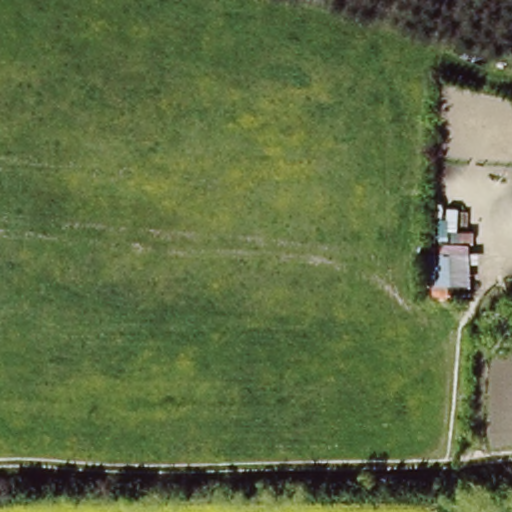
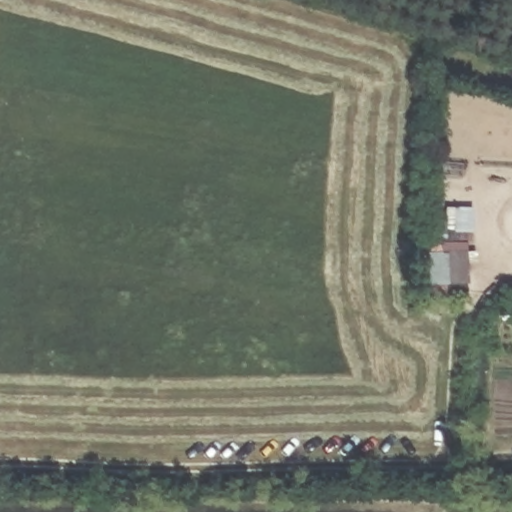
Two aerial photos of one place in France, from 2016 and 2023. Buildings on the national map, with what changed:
unchanged [(452,245),(455,302),(430,302),(427,250),(452,245)]

